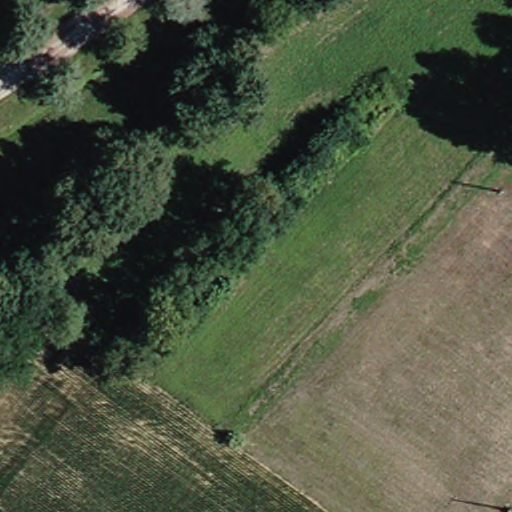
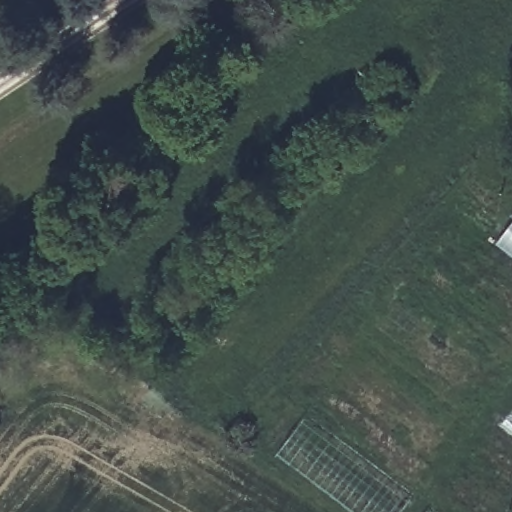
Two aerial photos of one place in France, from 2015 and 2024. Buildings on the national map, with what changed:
new [(512,225),(512,255),(498,244),(512,225)]
new [(401,512),(352,512),(278,454),(308,416),(413,497),(401,512)]
new [(430,510),(433,512),(428,512),(430,510)]

